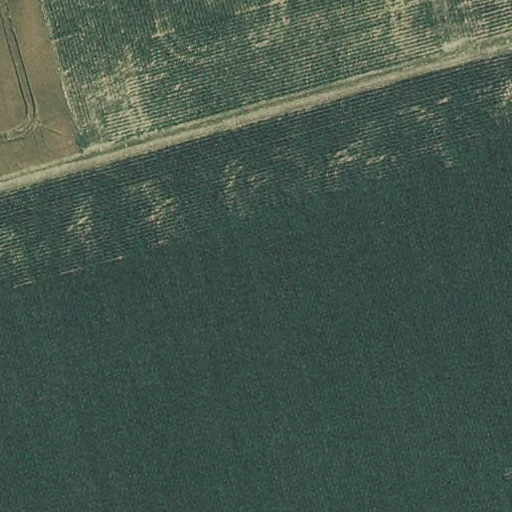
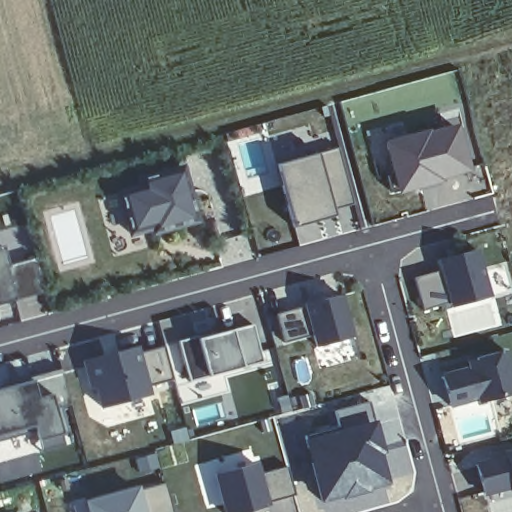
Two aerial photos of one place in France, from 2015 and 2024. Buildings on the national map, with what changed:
new [(441,182),(395,194),(382,141),(427,128),(429,132),(458,125),(470,171),(440,178),(441,182)]
new [(332,211),(334,218),(293,229),(275,165),(317,153),(337,147),(353,204),(332,211)]
new [(152,234),(151,228),(129,234),(119,192),(141,187),(140,180),(182,168),(196,220),(152,234)]
new [(12,263),(40,255),(49,289),(0,303),(0,247),(8,245),(12,263)]
new [(423,311),(414,277),(440,270),(437,259),(476,248),(490,298),(450,309),(449,304),(423,311)]
new [(285,343),(275,313),(303,305),(340,294),(352,337),(315,347),(312,335),(285,343)]
new [(241,366),(206,376),(189,381),(177,341),(198,335),(197,340),(231,331),(252,325),(262,362),(241,366)]
new [(137,348),(139,354),(165,346),(175,380),(149,387),(150,395),(104,408),(98,386),(93,387),(85,362),(137,348)]
new [(446,409),(437,376),(467,368),(465,361),(506,349),(512,370),(512,394),(477,405),(475,400),(446,409)]
new [(62,408),(67,433),(62,434),(64,445),(40,451),(35,431),(44,429),(42,425),(0,436),(0,390),(32,382),(30,377),(60,369),(70,405),(67,406),(62,408)]
new [(392,482),(325,500),(307,437),(376,419),(392,482)]
new [(512,488),(484,496),(474,461),(502,453),(512,450),(512,490),(512,488)]
new [(263,473),(289,466),(297,496),(239,512),(225,512),(215,473),(259,461),(263,473)]
new [(173,512),(89,512),(85,499),(164,479),(173,512)]

